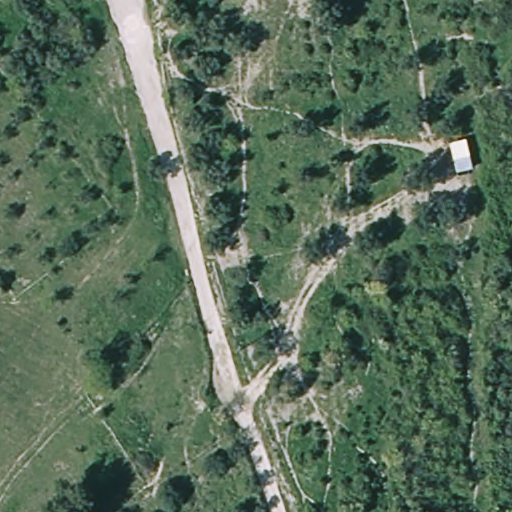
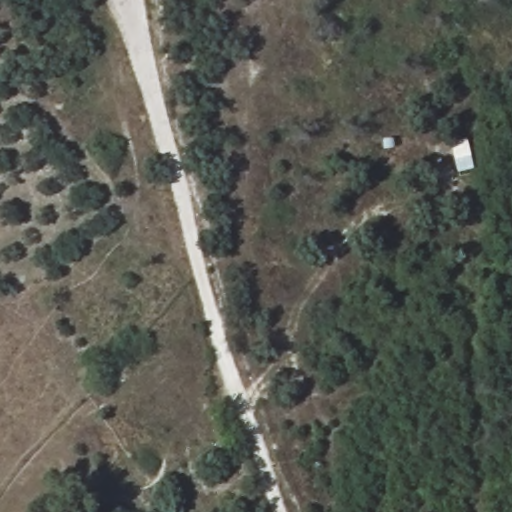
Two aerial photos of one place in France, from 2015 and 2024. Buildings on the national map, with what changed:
unchanged [(467,137),(477,169),(460,175),(453,142),(467,137)]

